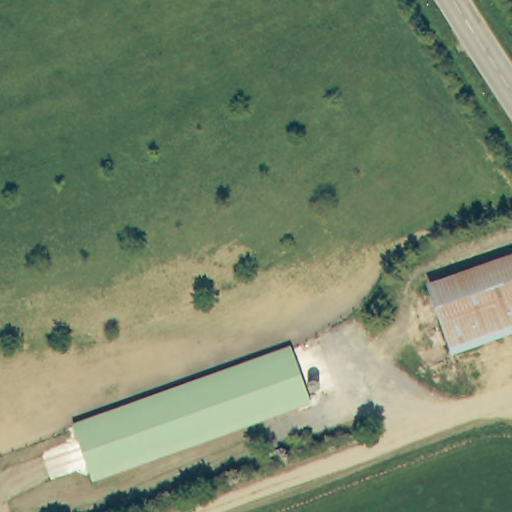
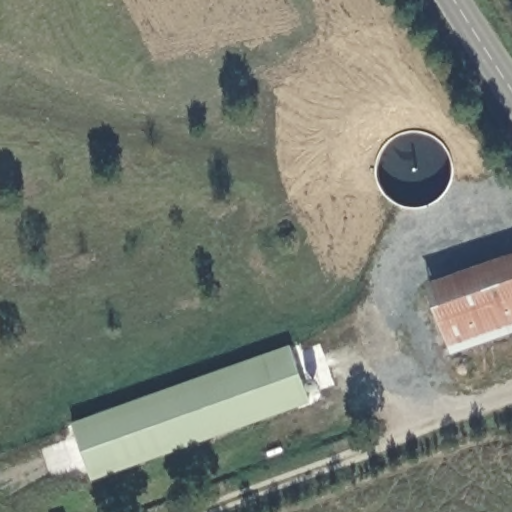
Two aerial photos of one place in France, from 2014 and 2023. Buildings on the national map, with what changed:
unchanged [(512,257),(512,327),(452,349),(431,285),(512,257)]
unchanged [(292,351),(307,394),(89,474),(74,430),(292,351)]

